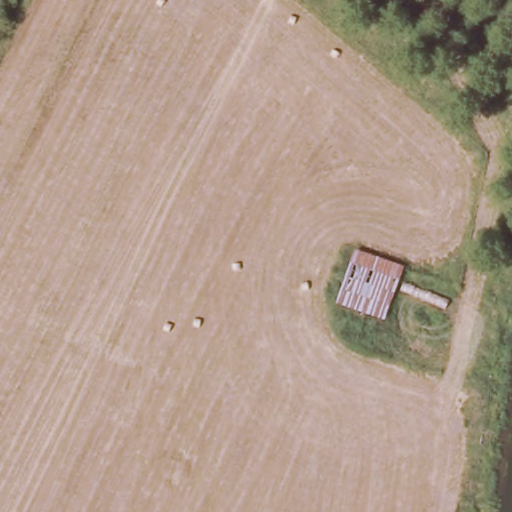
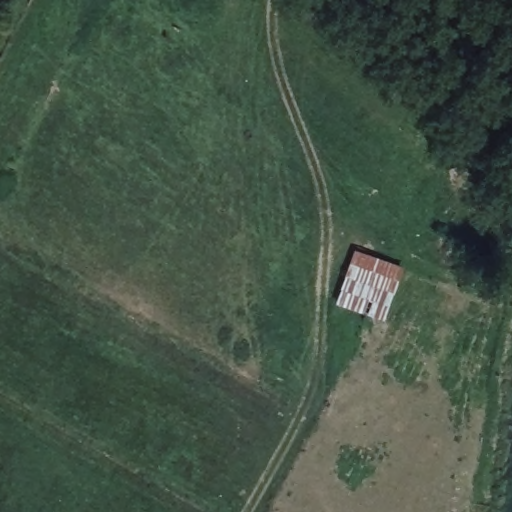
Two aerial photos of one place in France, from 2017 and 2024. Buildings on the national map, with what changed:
unchanged [(350,249),(400,265),(381,318),(333,301),(350,249)]

